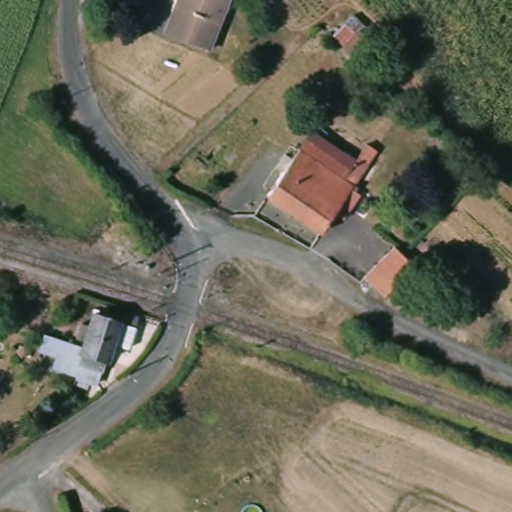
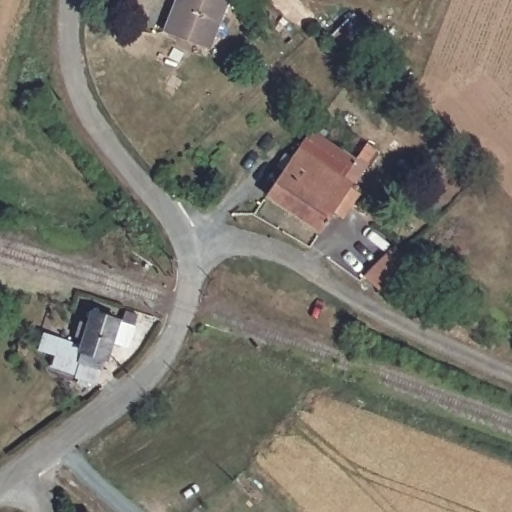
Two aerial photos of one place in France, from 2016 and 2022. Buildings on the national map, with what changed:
unchanged [(209,49),(164,31),(177,0),(229,0),(209,49)]
unchanged [(345,217),(333,210),(318,231),(265,197),(311,128),(357,158),(367,142),(375,147),(356,175),(349,185),(361,193),(345,217)]
unchanged [(388,285),(369,267),(396,237),(416,255),(388,285)]
unchanged [(77,337),(82,323),(90,326),(94,314),(115,321),(119,323),(112,343),(107,361),(103,360),(100,369),(81,363),(84,353),(82,353),(83,349),(86,340),(77,337)]
unchanged [(96,383),(51,369),(55,358),(39,353),(44,336),(83,349),(82,353),(84,353),(81,363),(100,369),(96,383)]
unchanged [(27,358),(18,355),(22,346),(30,348),(27,358)]

